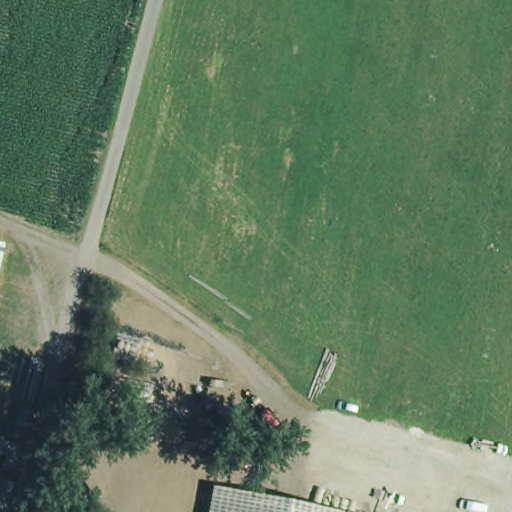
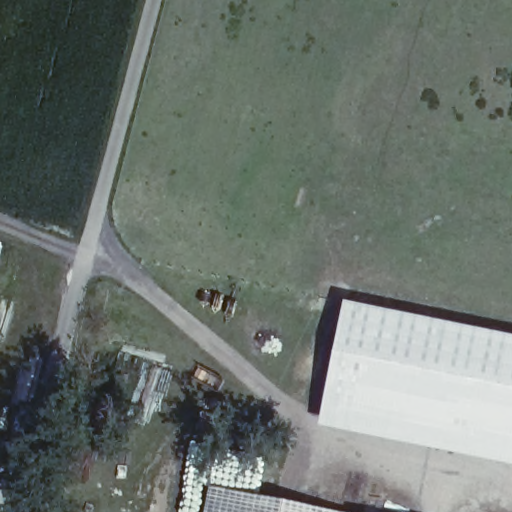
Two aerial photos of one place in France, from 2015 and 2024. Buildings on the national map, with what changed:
new [(512,335),(512,468),(315,427),(338,297),(512,335)]
unchanged [(341,512),(209,512),(215,484),(341,512)]

